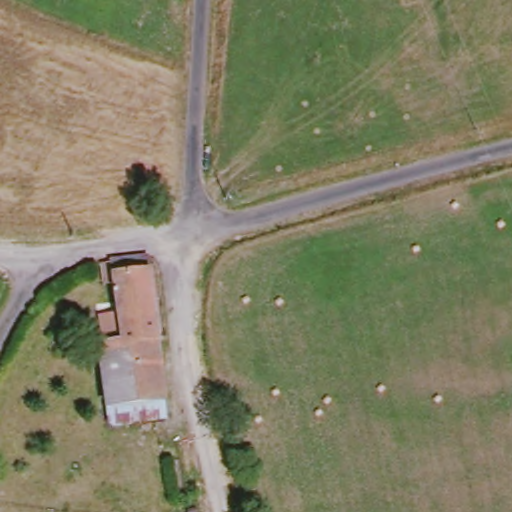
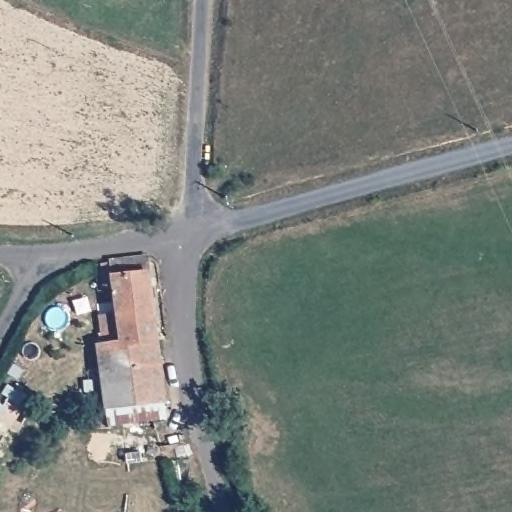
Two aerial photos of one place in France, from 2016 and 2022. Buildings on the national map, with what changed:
unchanged [(115,428),(113,413),(105,353),(130,348),(120,268),(150,264),(168,408),(149,410),(150,424),(115,428)]

